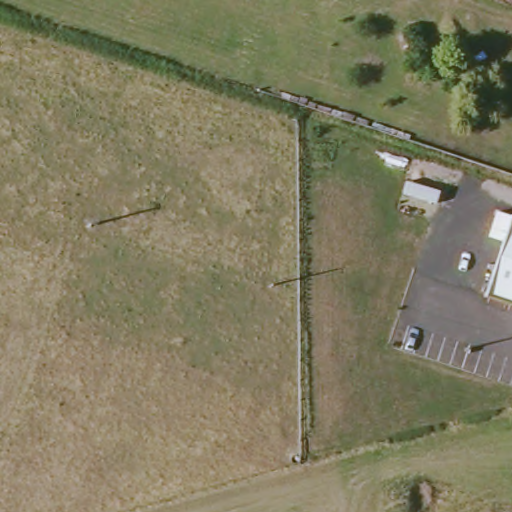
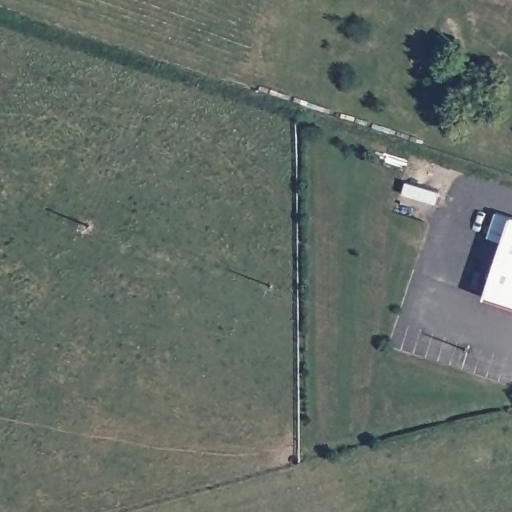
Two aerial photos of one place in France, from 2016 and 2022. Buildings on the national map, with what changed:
unchanged [(505,241),(489,238),(497,212),(512,217),(512,307),(485,296),(505,241)]

